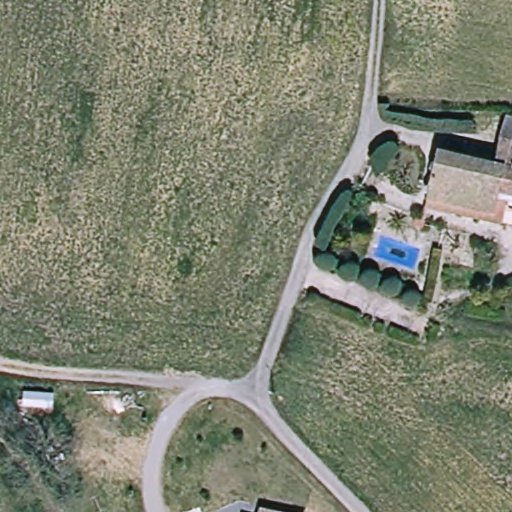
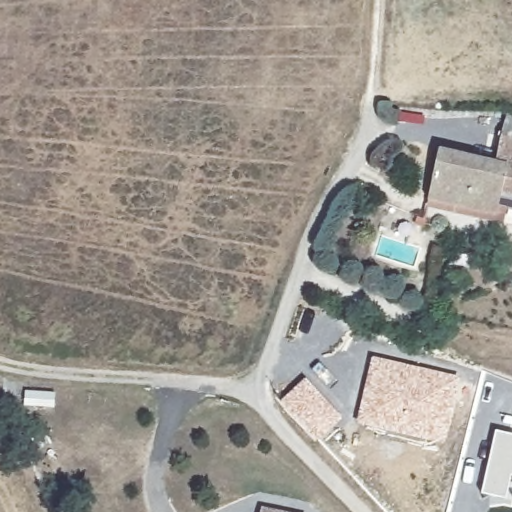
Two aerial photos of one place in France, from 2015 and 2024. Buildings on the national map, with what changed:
unchanged [(502,182),(497,203),(429,185),(442,141),(499,156),(510,110),(512,110),(512,184),(502,182)]
new [(355,422),(371,357),(460,377),(442,443),(355,422)]
new [(317,442),(280,402),(306,378),(342,418),(317,442)]
new [(512,475),(505,499),(480,494),(495,429),(512,433),(512,475)]
unchanged [(265,509),(281,512),(265,512),(265,509)]

